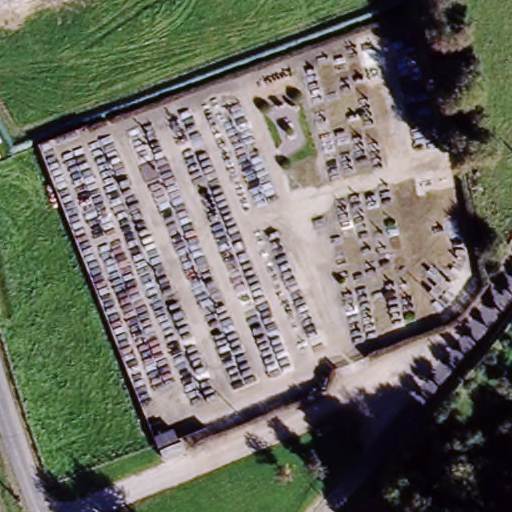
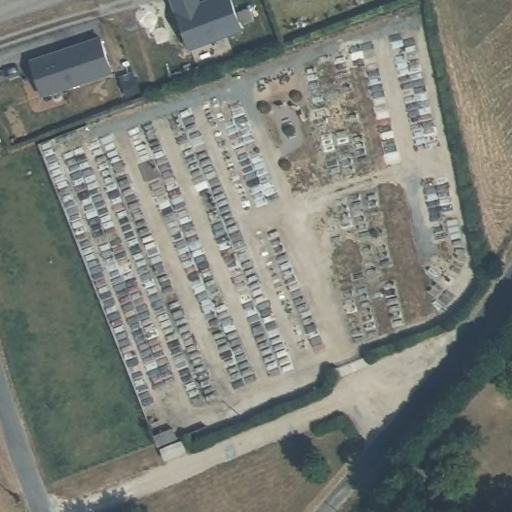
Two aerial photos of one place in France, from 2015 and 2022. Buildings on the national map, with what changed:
new [(213,0),(227,0),(239,32),(187,51),(169,1),(171,0),(195,0),(197,6),(213,0)]
new [(97,40),(109,75),(40,99),(28,64),(97,40)]

